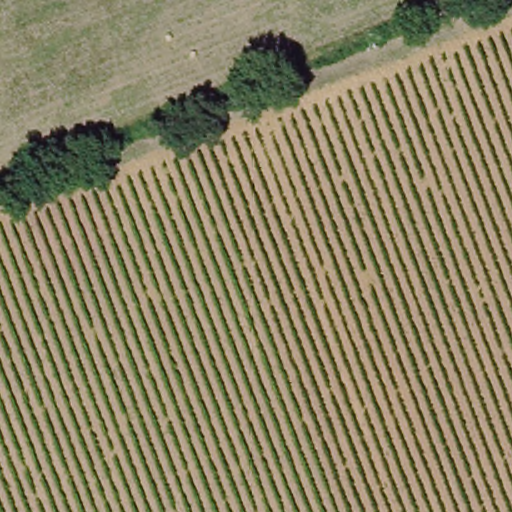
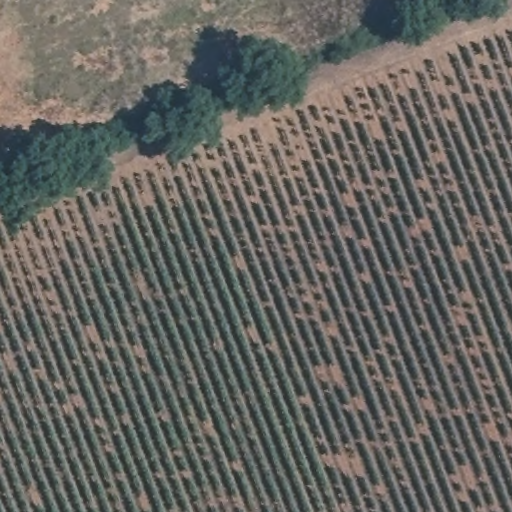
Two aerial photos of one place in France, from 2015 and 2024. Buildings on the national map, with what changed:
[]

